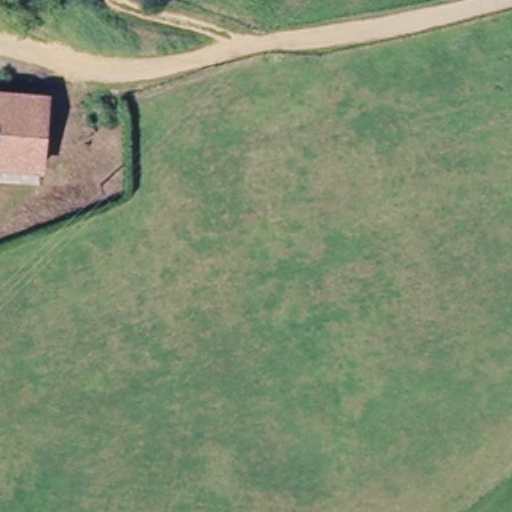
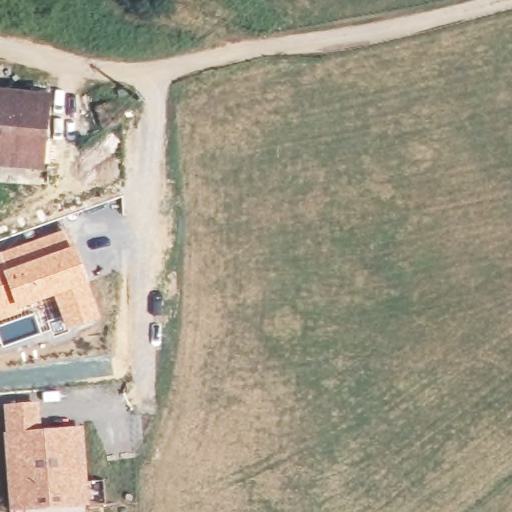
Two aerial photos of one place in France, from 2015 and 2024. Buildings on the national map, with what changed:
unchanged [(0,90),(41,95),(48,96),(41,165),(43,169),(34,168),(0,163),(0,90)]
unchanged [(106,100),(115,118),(100,129),(89,108),(106,100)]
new [(0,322),(0,251),(64,228),(73,244),(100,318),(65,333),(52,338),(45,324),(39,327),(33,313),(39,310),(36,304),(0,322)]
new [(3,447),(1,404),(38,401),(41,428),(83,425),(88,507),(85,508),(86,512),(23,512),(8,512),(3,447)]

